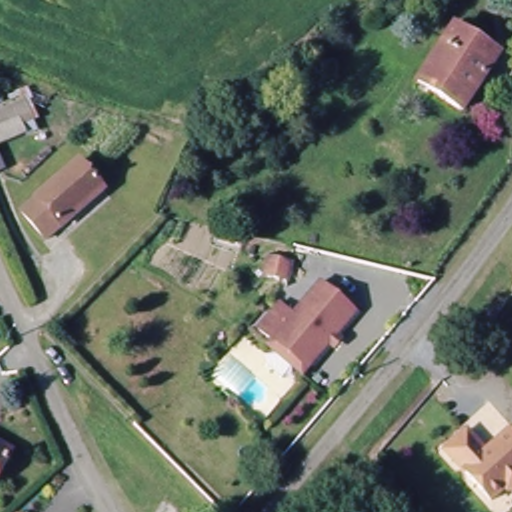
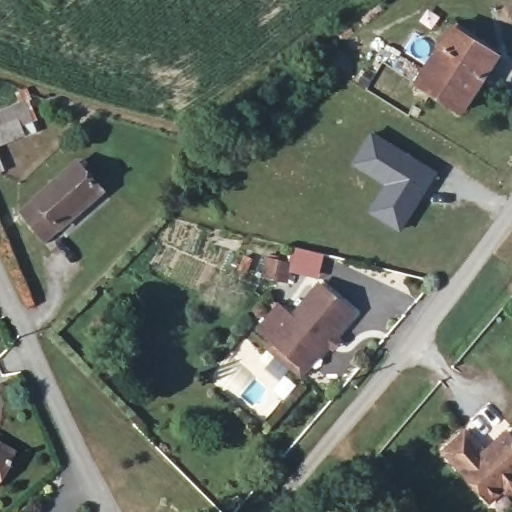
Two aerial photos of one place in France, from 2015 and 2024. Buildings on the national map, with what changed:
unchanged [(497,57),(461,109),(417,81),(453,29),(497,57)]
unchanged [(28,129),(0,142),(0,120),(22,109),(28,129)]
new [(399,228),(370,210),(387,182),(353,161),(372,131),(435,172),(423,192),(417,201),(399,228)]
unchanged [(49,235),(26,209),(83,162),(105,187),(49,235)]
unchanged [(288,263),(283,280),(261,274),(266,258),(288,263)]
unchanged [(271,349),(276,345),(256,324),(261,319),(275,304),(287,314),(318,284),(357,322),(321,361),(317,366),(302,381),(271,349)]
unchanged [(512,449),(512,497),(501,497),(495,491),(483,502),(459,474),(457,477),(436,453),(458,433),(478,456),(499,436),(512,449)]
unchanged [(0,473),(0,453),(8,458),(0,473)]

